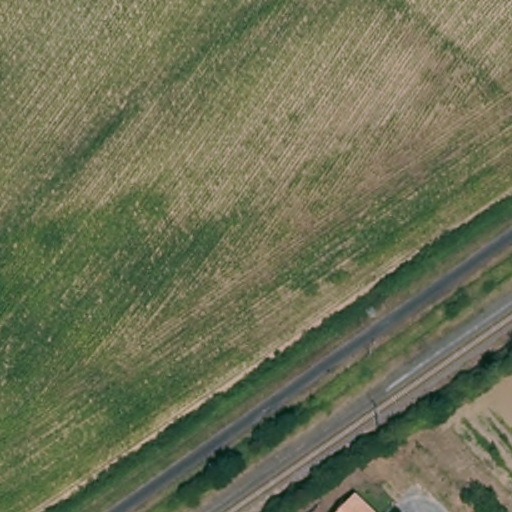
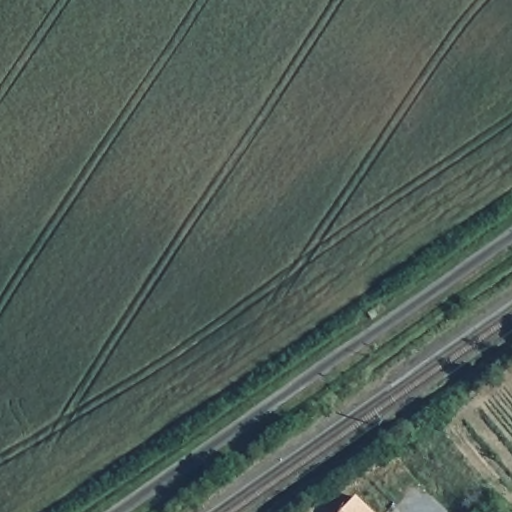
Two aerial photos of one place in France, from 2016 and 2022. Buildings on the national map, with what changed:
unchanged [(339,512),(351,500),(363,512),(339,512)]

